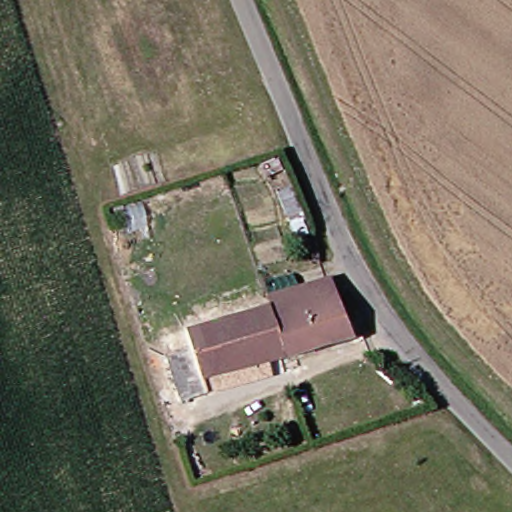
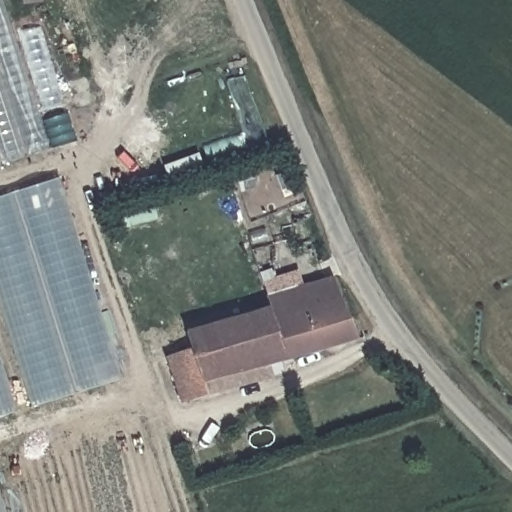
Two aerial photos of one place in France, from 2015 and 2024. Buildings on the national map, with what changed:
new [(0,0),(2,0),(47,151),(0,165),(0,0)]
new [(0,308),(0,197),(57,179),(119,378),(31,406),(0,308)]
unchanged [(209,397),(183,405),(170,359),(165,340),(192,332),(278,308),(275,296),(341,277),(344,285),(360,338),(235,372),(240,389),(209,397)]
new [(0,364),(15,411),(0,416),(0,364)]
new [(0,496),(4,512),(0,512),(0,496)]

